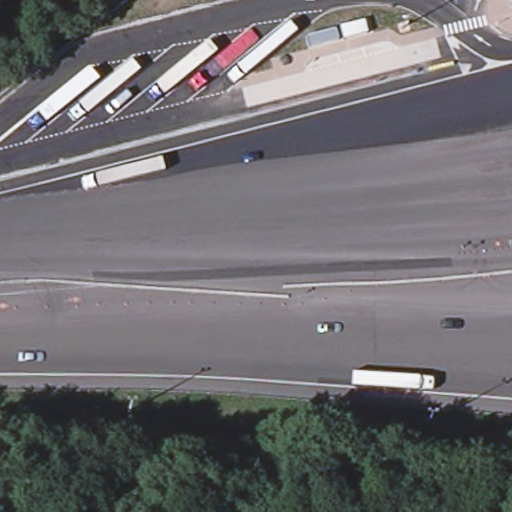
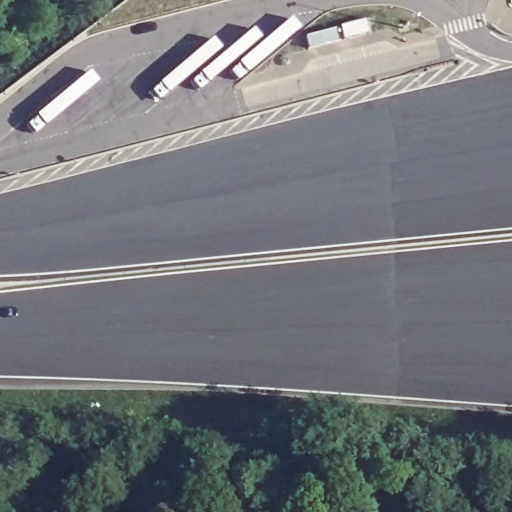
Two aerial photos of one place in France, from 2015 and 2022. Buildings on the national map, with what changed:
unchanged [(353,2),(353,0),(371,0),(353,2)]

